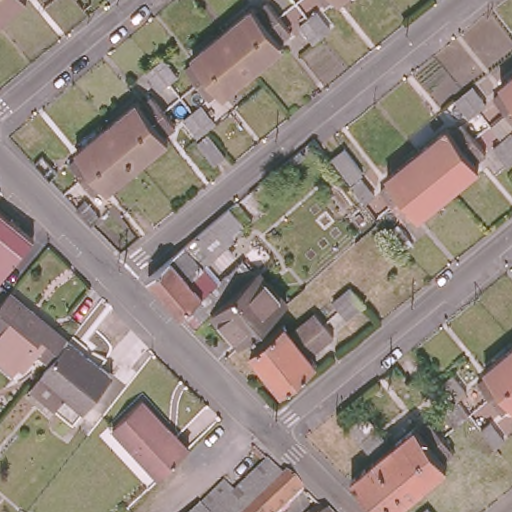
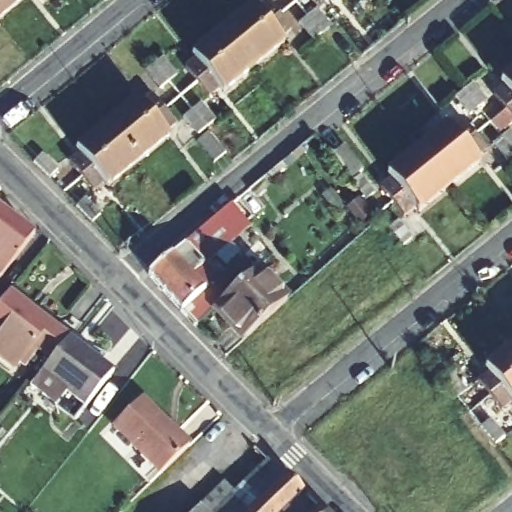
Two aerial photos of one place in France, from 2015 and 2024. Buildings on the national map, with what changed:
unchanged [(0,20),(0,0),(24,0),(0,20)]
unchanged [(340,4),(337,2),(327,10),(319,0),(345,0),(340,4)]
unchanged [(196,66),(192,61),(223,36),(253,11),(256,15),(265,7),(277,23),(290,39),(282,46),(284,49),(253,74),(223,99),(220,94),(207,104),(195,90),(183,76),(196,66)]
unchanged [(298,25),(308,17),(317,10),(333,29),(324,37),(315,45),(298,25)]
unchanged [(143,73),(154,65),(162,57),(177,75),(168,82),(158,90),(143,73)]
unchanged [(500,88),(495,83),(512,70),(512,125),(511,125),(500,111),(488,97),(500,88)]
unchanged [(448,97),(457,90),(466,83),(482,101),(473,109),(464,116),(448,97)]
unchanged [(69,170),(80,160),(76,155),(107,130),(137,105),(142,111),(153,102),(165,115),(177,130),(165,139),(169,143),(138,168),(108,193),(105,189),(92,199),(80,183),(69,170)]
unchanged [(183,119),(192,112),(201,104),(217,124),(209,131),(200,139),(183,119)]
unchanged [(386,181),(382,175),(412,151),(443,126),(447,132),(458,123),(470,137),(480,150),(470,158),(475,164),(444,188),(413,213),(410,209),(398,219),(386,204),(375,191),(386,181)]
unchanged [(506,131),(512,138),(512,160),(505,165),(488,146),(498,138),(506,131)]
unchanged [(321,144),(332,135),(348,155),(336,164),(321,144)]
unchanged [(46,153),(60,171),(50,179),(35,161),(46,153)]
unchanged [(355,174),(370,193),(360,201),(347,185),(345,182),(355,174)]
unchanged [(86,200),(104,221),(96,227),(77,207),(86,200)]
unchanged [(0,279),(0,211),(33,237),(0,279)]
unchanged [(176,316),(144,281),(225,211),(239,226),(225,236),(230,241),(197,270),(211,285),(176,316)]
unchanged [(385,232),(395,223),(411,243),(400,251),(385,232)]
unchanged [(248,253),(243,247),(247,244),(252,249),(256,246),(270,260),(251,275),(210,314),(190,332),(176,316),(211,285),(248,253)]
unchanged [(251,275),(281,307),(239,346),(210,314),(251,275)]
unchanged [(69,338),(51,360),(41,373),(32,384),(0,359),(0,332),(0,304),(10,291),(69,338)]
demolished [(277,328),(285,337),(300,325),(303,329),(311,323),(317,329),(262,375),(246,354),(277,328)]
demolished [(317,329),(323,335),(315,342),(317,346),(303,357),(311,367),(278,394),(262,375),(317,329)]
unchanged [(53,407),(66,393),(41,373),(51,360),(69,338),(111,372),(85,408),(73,423),(53,407)]
unchanged [(490,374),(485,369),(512,348),(512,403),(501,412),(489,397),(478,384),(490,374)]
unchanged [(451,371),(467,390),(458,397),(443,378),(451,371)]
unchanged [(113,434),(141,405),(190,454),(161,482),(113,434)]
demolished [(356,416),(372,434),(363,442),(348,423),(356,416)]
unchanged [(492,420),(505,436),(496,444),(483,428),(492,420)]
demolished [(391,477),(376,458),(416,425),(432,444),(391,477)]
demolished [(447,463),(407,496),(391,477),(432,444),(447,463)]
demolished [(376,458),(391,477),(407,496),(388,512),(380,512),(351,478),(376,458)]
unchanged [(226,499),(258,468),(273,483),(277,479),(295,497),(278,512),(190,512),(214,488),(226,499)]
demolished [(437,512),(422,512),(430,504),(437,512)]
unchanged [(324,512),(313,512),(318,506),(324,512)]

